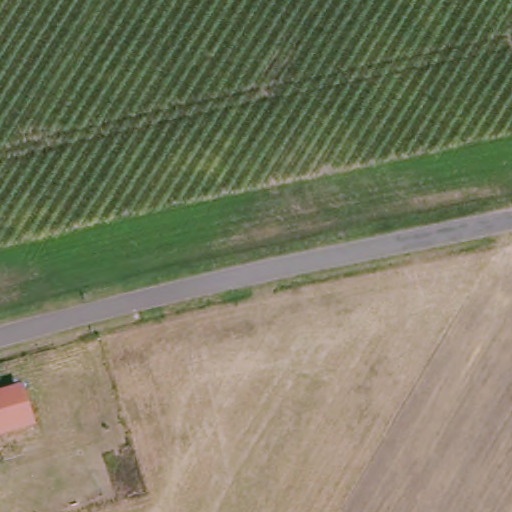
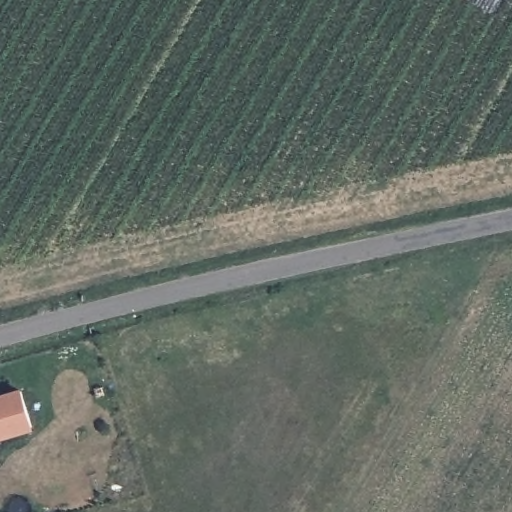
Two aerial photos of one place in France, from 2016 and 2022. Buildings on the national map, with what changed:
unchanged [(25,393),(35,429),(0,439),(0,400),(25,393)]

